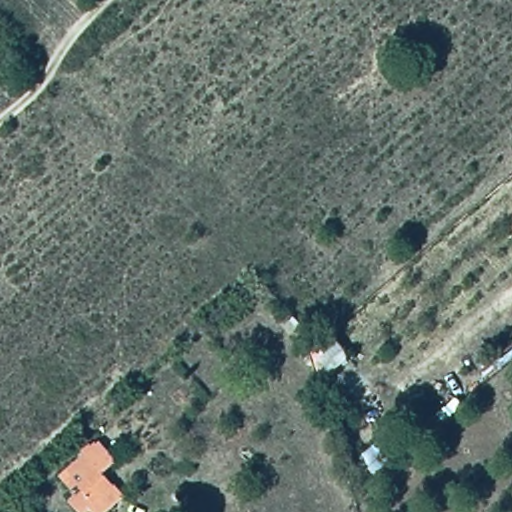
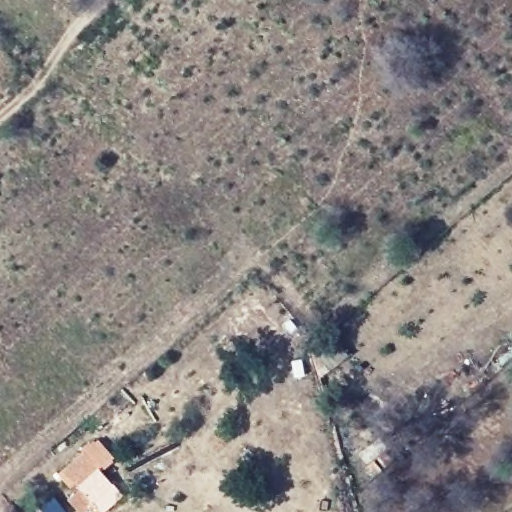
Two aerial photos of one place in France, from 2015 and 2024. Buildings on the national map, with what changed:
unchanged [(387,451),(381,455),(389,466),(371,484),(356,461),(376,442),(387,451)]
unchanged [(99,472),(123,500),(108,512),(71,512),(64,504),(77,493),(71,486),(65,490),(55,479),(95,446),(110,463),(99,472)]

